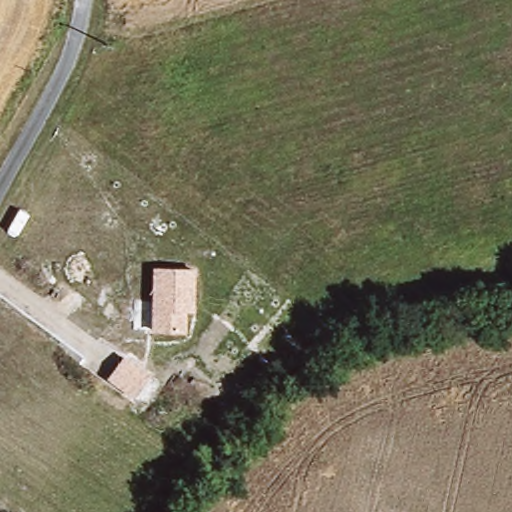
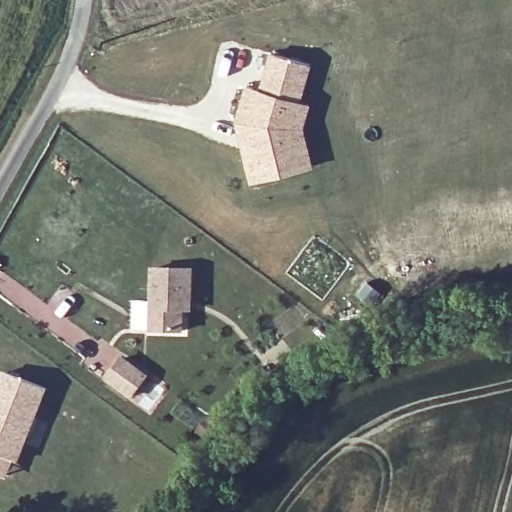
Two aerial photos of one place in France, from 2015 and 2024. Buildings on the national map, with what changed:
new [(267,50),(312,64),(301,99),(258,86),(267,50)]
new [(244,84),(258,86),(301,99),(311,101),(305,126),(314,166),(248,184),(234,124),(244,84)]
unchanged [(194,313),(185,313),(184,337),(151,335),(152,268),(194,269),(194,313)]
new [(152,374),(135,399),(106,379),(124,355),(152,374)]
new [(4,372),(50,389),(21,463),(17,461),(8,479),(0,476),(0,383),(4,372)]

